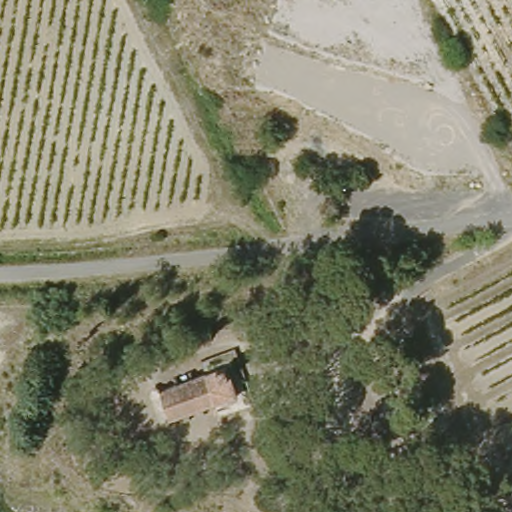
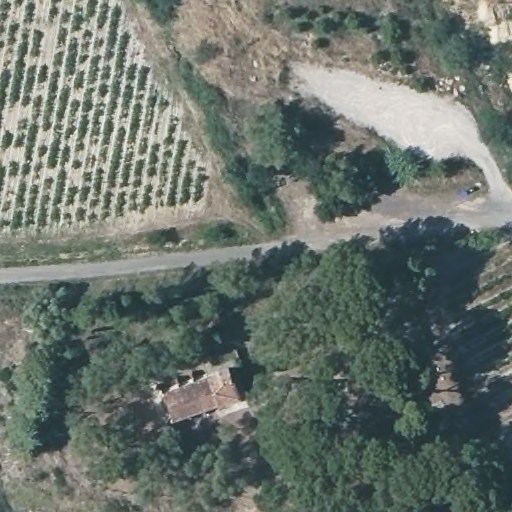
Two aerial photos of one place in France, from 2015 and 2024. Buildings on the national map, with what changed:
unchanged [(242,396),(175,415),(164,380),(231,361),(242,396)]

